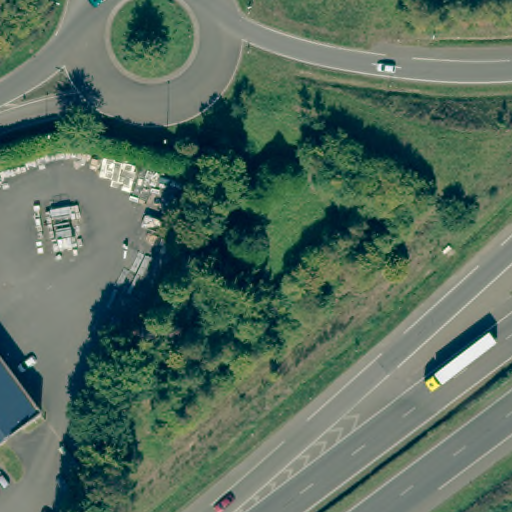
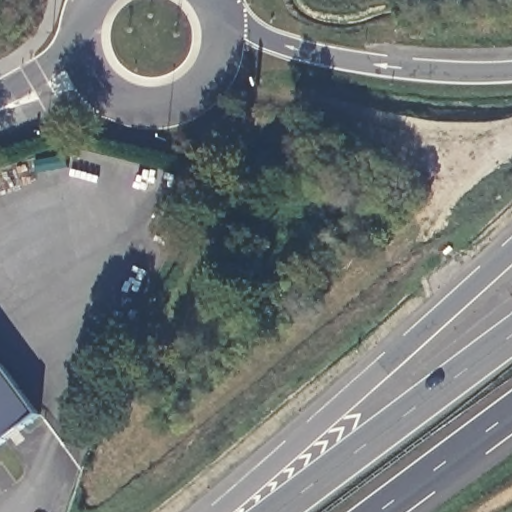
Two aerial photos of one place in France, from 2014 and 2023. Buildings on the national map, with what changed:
unchanged [(39,417),(0,446),(0,364),(39,417)]

